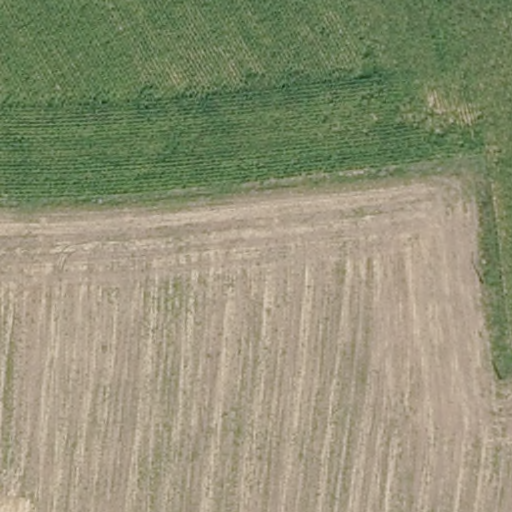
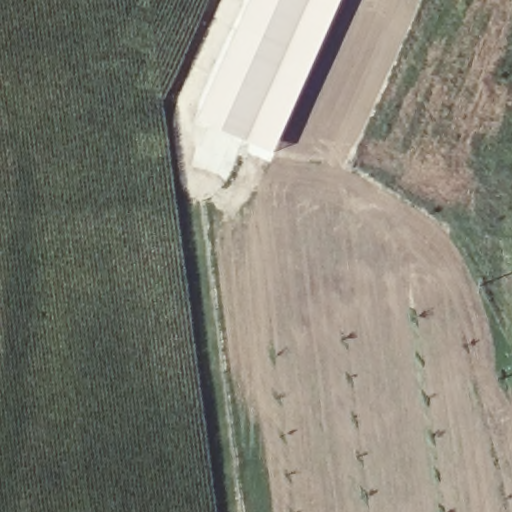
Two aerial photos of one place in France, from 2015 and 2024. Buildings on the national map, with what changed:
new [(247,139),(196,117),(249,0),(309,0),(247,139)]

